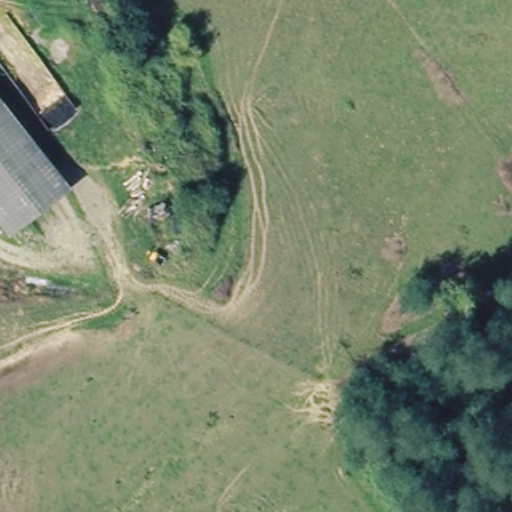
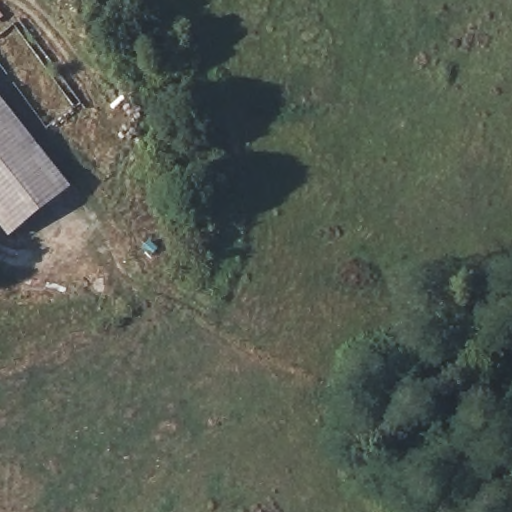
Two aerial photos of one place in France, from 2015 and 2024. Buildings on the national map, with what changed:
unchanged [(5,232),(0,224),(0,88),(70,186),(5,232)]

